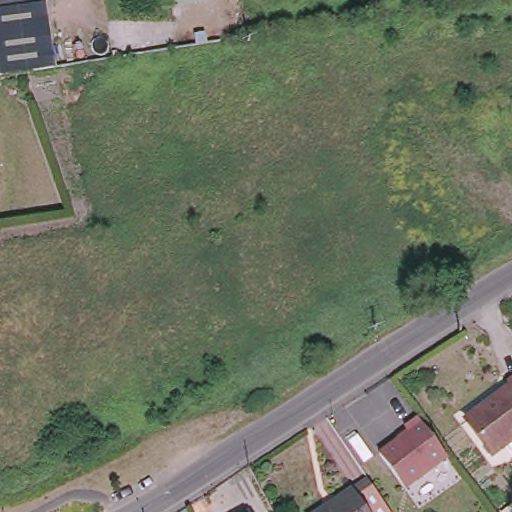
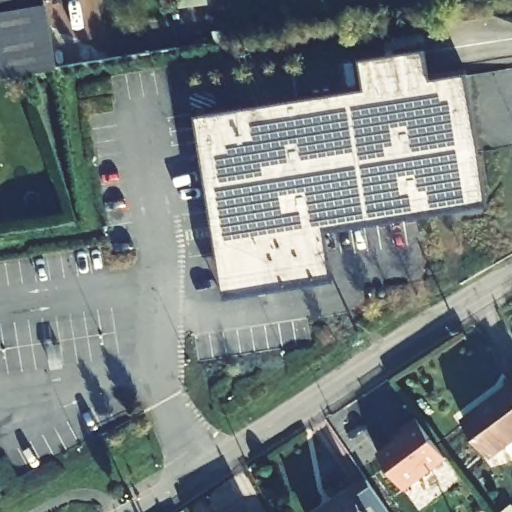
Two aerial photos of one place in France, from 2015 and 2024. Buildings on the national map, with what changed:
unchanged [(6,82),(0,40),(0,0),(47,0),(58,74),(6,82)]
new [(178,6),(177,0),(207,0),(207,2),(178,6)]
unchanged [(0,82),(0,40),(6,82),(0,82)]
new [(461,70),(481,200),(283,231),(222,241),(208,142),(192,145),(187,113),(461,70)]
new [(208,142),(222,241),(283,231),(286,247),(209,258),(192,145),(208,142)]
new [(240,254),(286,247),(283,231),(322,225),(332,279),(217,297),(209,258),(240,254)]
unchanged [(508,386),(512,390),(512,453),(508,447),(493,458),(463,418),(508,386)]
unchanged [(431,441),(445,459),(402,490),(377,455),(407,433),(402,428),(415,418),(431,441)]
unchanged [(390,512),(314,512),(348,487),(352,492),(368,481),(390,512)]

